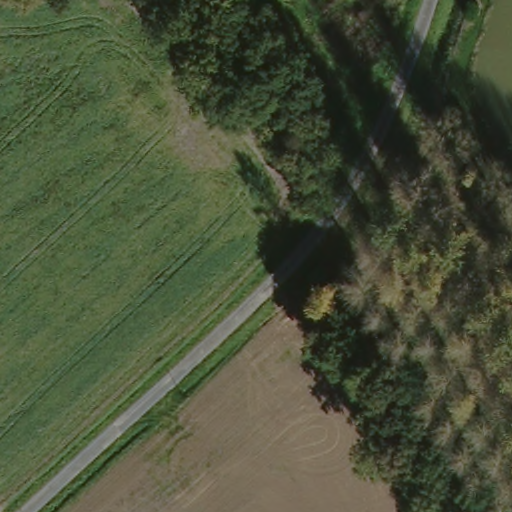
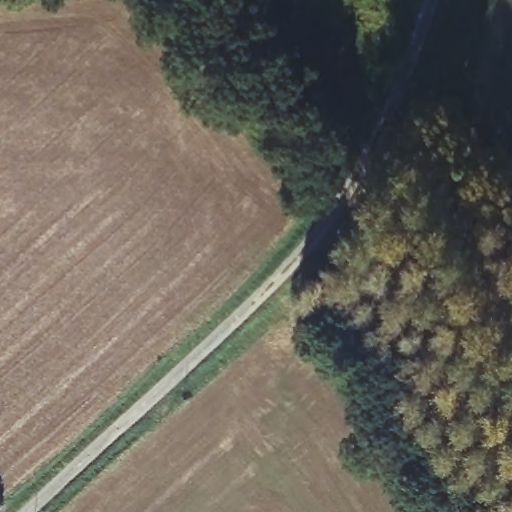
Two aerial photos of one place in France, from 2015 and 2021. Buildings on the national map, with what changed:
[]

